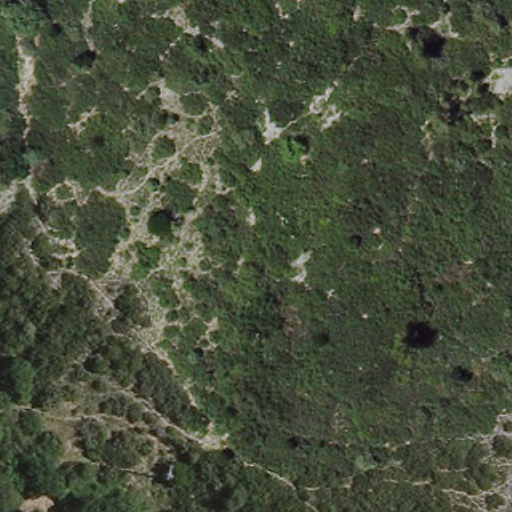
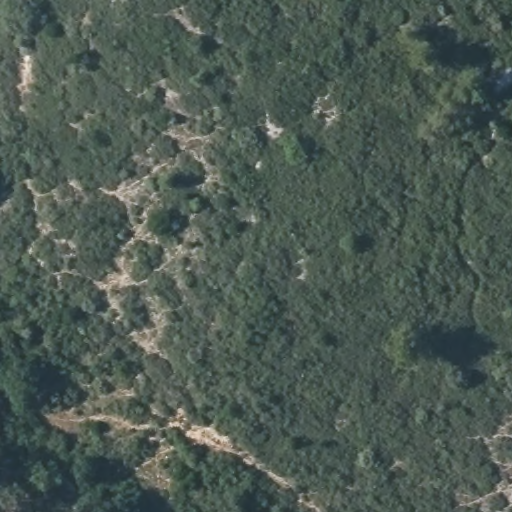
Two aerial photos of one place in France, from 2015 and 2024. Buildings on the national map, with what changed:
[]

